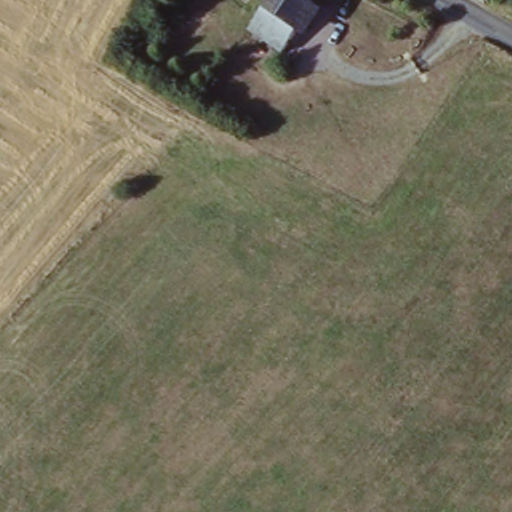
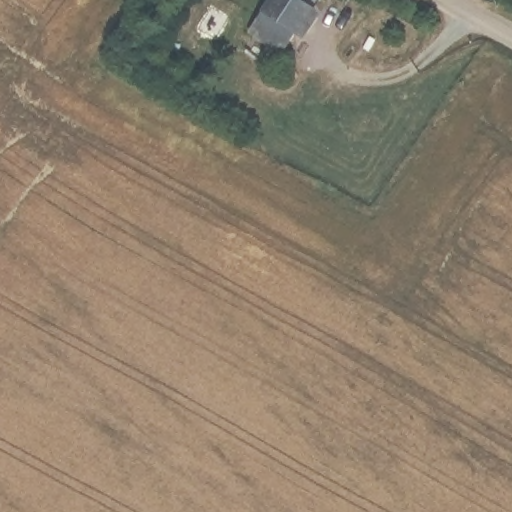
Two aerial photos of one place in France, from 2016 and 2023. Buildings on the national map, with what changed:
unchanged [(281,46),(248,25),(264,0),(307,0),(311,2),(281,46)]

